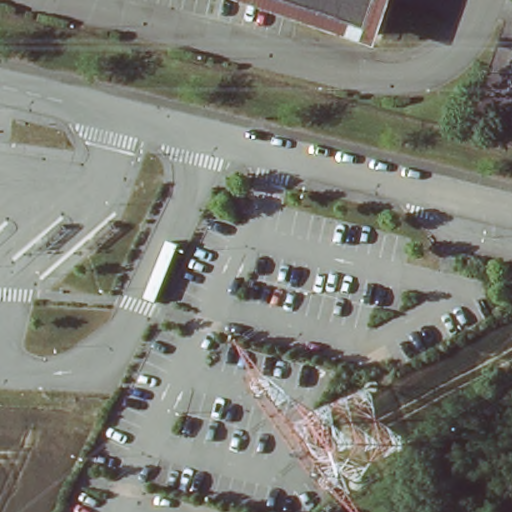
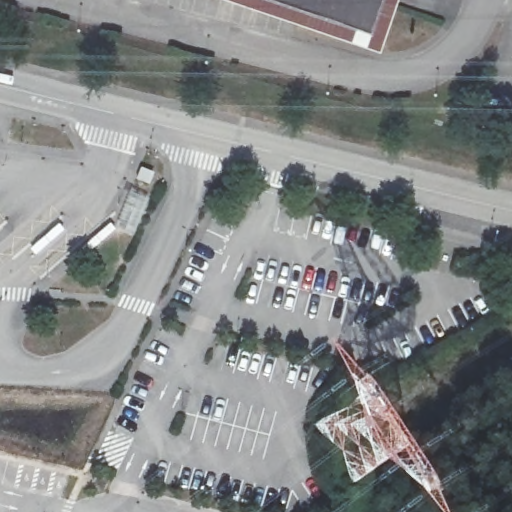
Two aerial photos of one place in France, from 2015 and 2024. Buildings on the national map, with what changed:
unchanged [(374,49),(233,0),(391,0),(374,49)]

